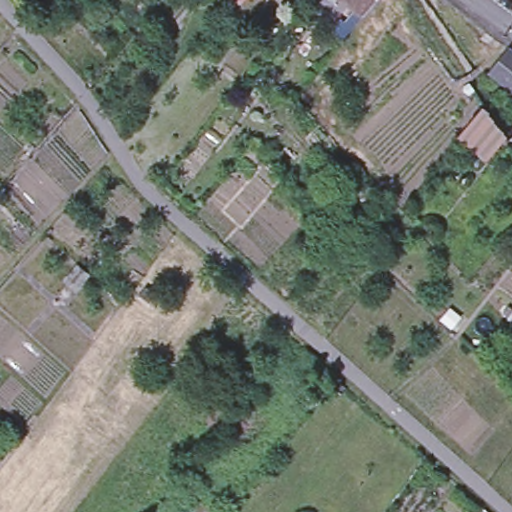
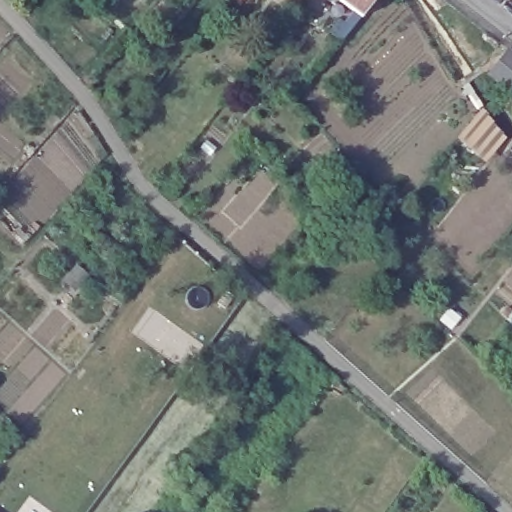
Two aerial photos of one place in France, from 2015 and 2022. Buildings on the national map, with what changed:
unchanged [(360,16),(338,0),(373,0),(360,16)]
unchanged [(497,86),(487,77),(490,74),(507,52),(512,56),(512,98),(502,90),(497,86)]
unchanged [(507,140),(489,164),(457,139),(483,106),(507,140)]

